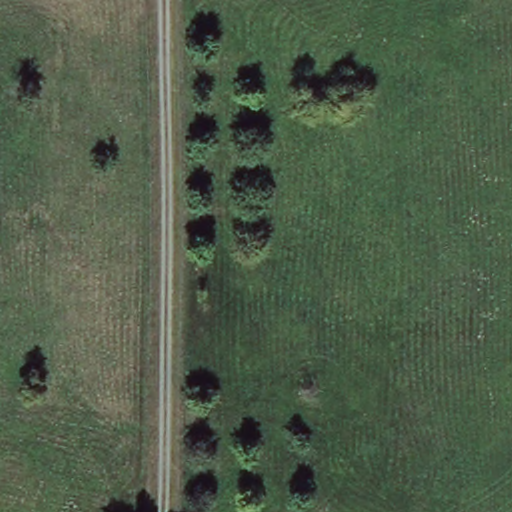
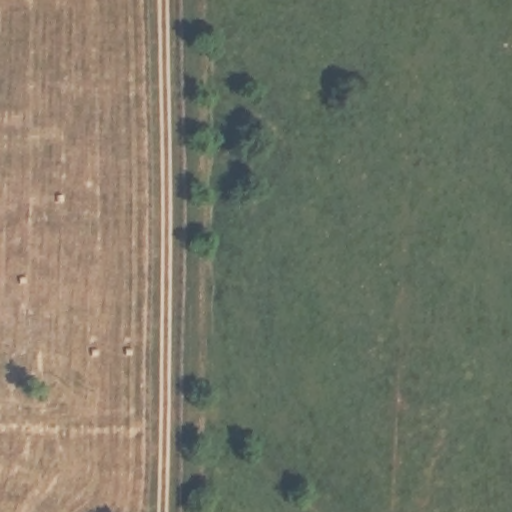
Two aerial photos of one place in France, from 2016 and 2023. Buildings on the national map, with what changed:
[]

